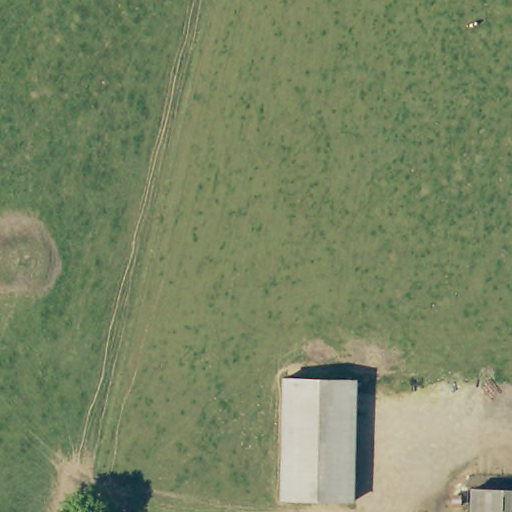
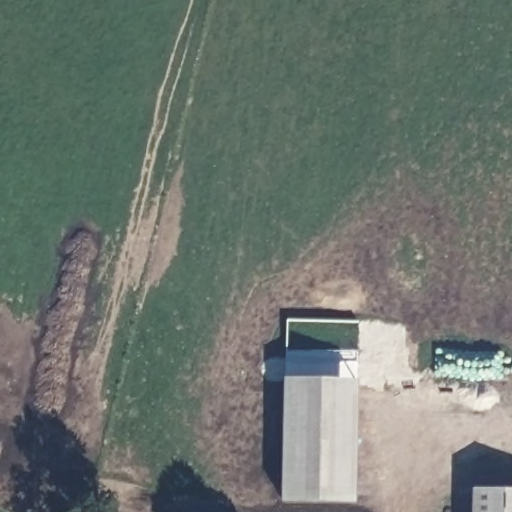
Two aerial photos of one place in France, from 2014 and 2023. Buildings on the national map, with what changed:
unchanged [(356,381),(353,503),(280,501),(282,379),(356,381)]
unchanged [(472,489),(512,491),(512,512),(472,512),(472,489)]

